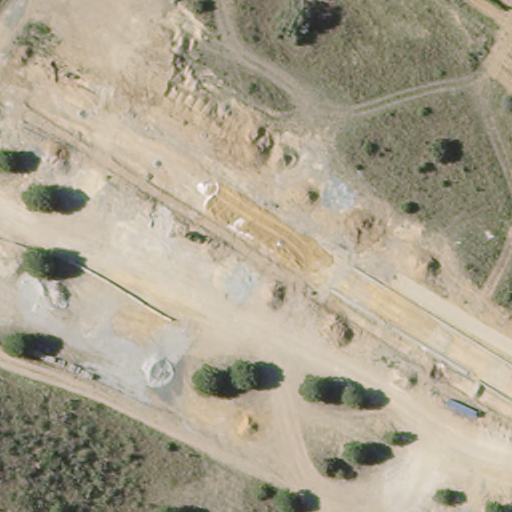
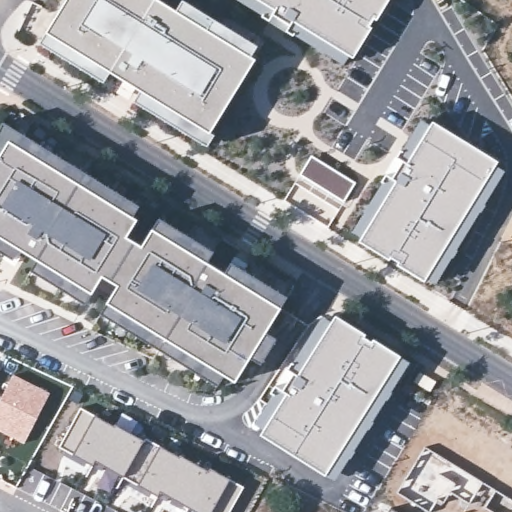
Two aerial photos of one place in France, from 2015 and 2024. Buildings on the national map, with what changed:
new [(68,0),(156,0),(176,13),(182,3),(256,48),(250,59),(254,61),(209,134),(214,137),(208,147),(122,95),(128,84),(111,73),(105,83),(41,44),(68,0)]
new [(353,58),(348,55),(342,64),(239,0),(390,0),(353,58)]
new [(398,265),(399,263),(391,258),(390,259),(359,241),(361,238),(352,233),(421,120),(430,125),(433,121),(498,162),(496,165),(506,171),(437,283),(428,278),(425,281),(398,265)]
new [(2,137),(284,297),(235,383),(0,250),(0,139),(2,137)]
new [(310,154),(356,182),(342,205),(296,178),(310,154)]
new [(410,362),(335,480),(327,475),(261,435),(264,429),(256,423),(323,317),(331,322),(336,316),(401,357),(410,362)]
new [(1,396),(13,374),(50,393),(23,444),(0,431),(0,395),(1,396)]
new [(195,512),(163,494),(159,499),(97,463),(93,469),(59,449),(81,409),(143,443),(145,439),(209,473),(211,470),(245,489),(232,512),(195,512)]
new [(469,503),(450,491),(441,503),(437,500),(430,512),(398,493),(426,447),(512,500),(512,512),(501,512),(493,512),(472,499),(469,503)]
new [(397,512),(387,512),(390,508),(397,512)]

